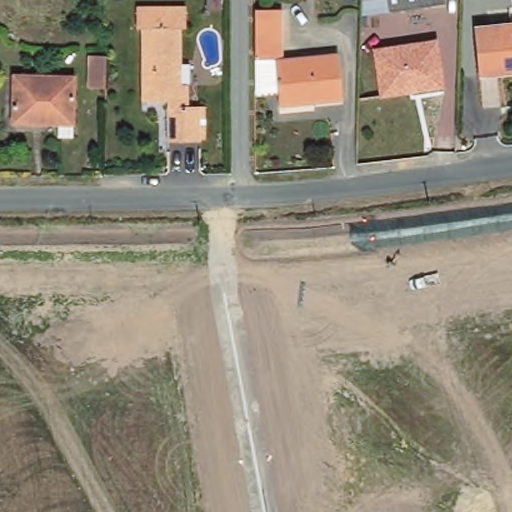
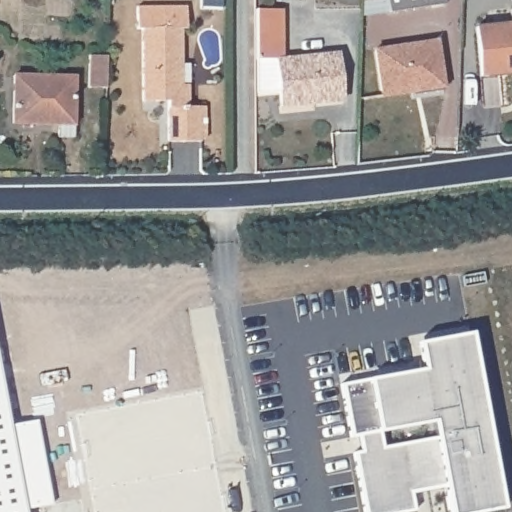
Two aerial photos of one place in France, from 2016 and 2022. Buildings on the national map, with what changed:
unchanged [(416,6),(360,14),(358,0),(444,0),(444,3),(416,6)]
unchanged [(255,56),(255,8),(283,8),(283,58),(339,53),(343,99),(280,104),(276,57),(255,56)]
unchanged [(512,12),(512,17),(511,12),(512,12)]
unchanged [(199,121),(194,121),(192,144),(160,141),(162,101),(137,99),(142,25),(181,27),(177,85),(184,85),(183,108),(195,109),(200,109),(199,121)]
unchanged [(512,69),(511,69),(511,74),(477,78),(472,31),(512,27),(512,69)]
unchanged [(432,39),(439,85),(377,93),(371,48),(432,39)]
unchanged [(105,55),(105,86),(86,86),(87,54),(105,55)]
unchanged [(74,74),(72,135),(57,135),(57,121),(11,120),(12,73),(74,74)]
new [(503,511),(495,512),(447,512),(443,489),(411,494),(414,512),(411,512),(362,512),(352,453),(434,438),(431,424),(376,434),(350,439),(340,384),(366,379),(420,368),(415,342),(471,332),(503,511)]

